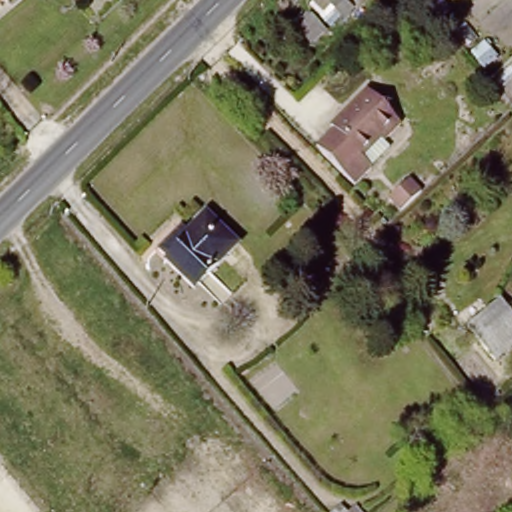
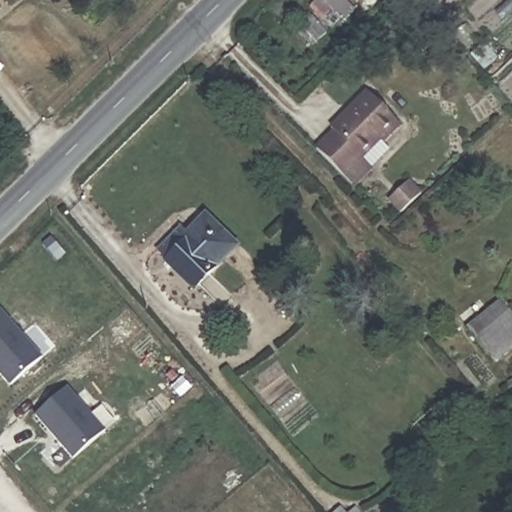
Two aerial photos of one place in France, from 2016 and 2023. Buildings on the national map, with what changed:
unchanged [(0,1),(0,0),(4,0),(2,2),(0,1)]
unchanged [(347,0),(338,9),(331,2),(316,17),(303,5),(308,0),(347,0)]
unchanged [(381,148),(360,170),(321,134),(340,111),(339,110),(374,70),(411,103),(394,122),(399,127),(381,148)]
unchanged [(405,212),(392,199),(412,180),(425,193),(405,212)]
unchanged [(212,222),(240,249),(198,290),(162,255),(185,232),(194,240),(212,222)]
unchanged [(498,305),(512,321),(512,349),(494,364),(466,330),(498,305)]
new [(0,375),(0,309),(1,308),(44,357),(10,387),(0,375)]
new [(74,460),(34,417),(68,385),(107,430),(74,460)]

